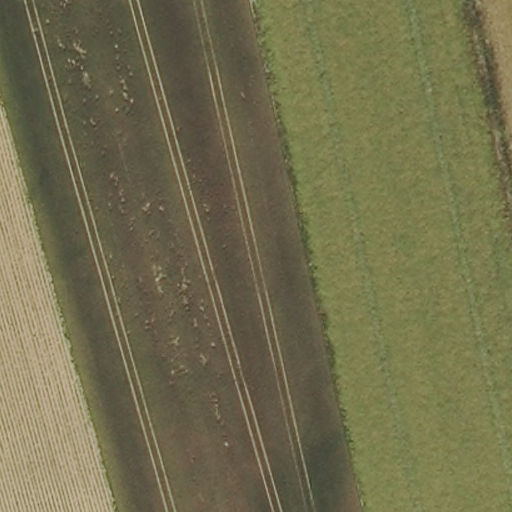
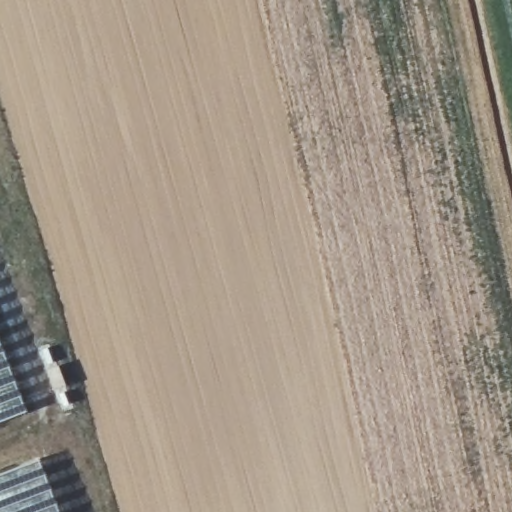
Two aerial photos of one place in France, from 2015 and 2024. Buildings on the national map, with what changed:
new [(0,424),(0,346),(26,414),(0,424)]
new [(57,512),(0,512),(0,473),(37,458),(57,512)]

